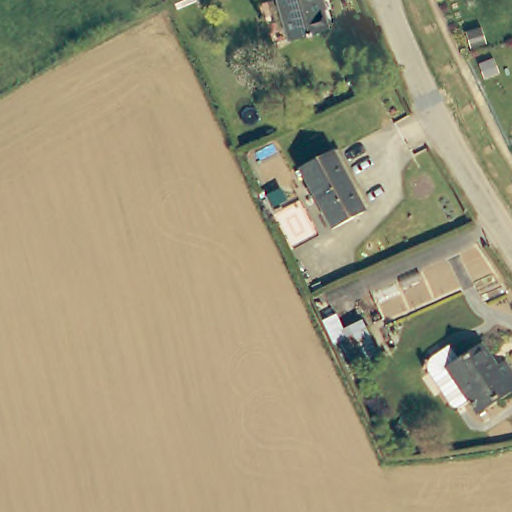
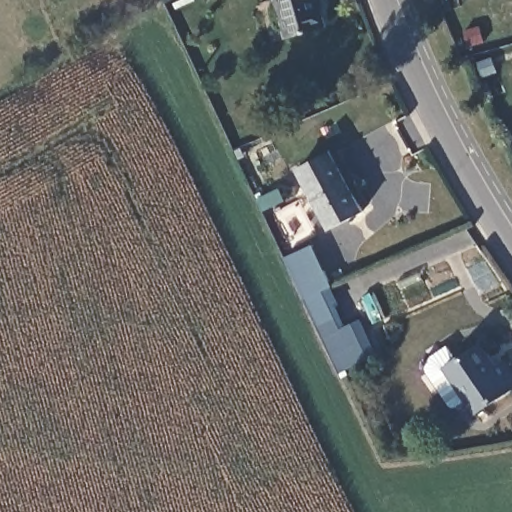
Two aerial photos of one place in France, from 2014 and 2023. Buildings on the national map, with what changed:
unchanged [(278,0),(315,0),(324,27),(289,36),(278,0)]
unchanged [(329,153),(333,159),(361,210),(329,228),(295,172),(329,153)]
new [(333,286),(349,325),(361,318),(378,353),(340,373),(286,257),(314,245),(333,286)]
unchanged [(471,354),(493,338),(509,358),(512,356),(512,393),(492,408),(482,395),(459,362),(471,354)]
unchanged [(459,362),(482,395),(474,401),(466,401),(442,368),(442,354),(458,342),(471,354),(459,362)]

